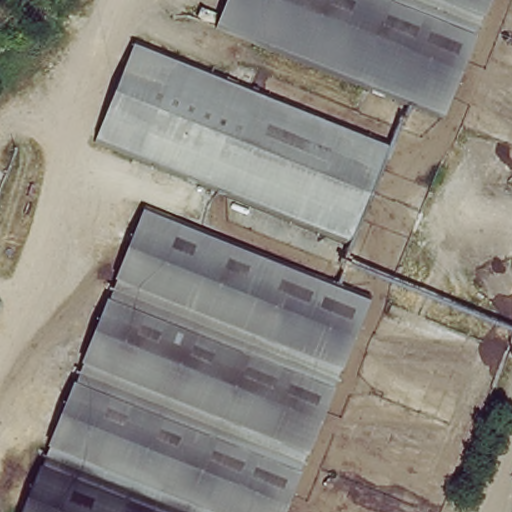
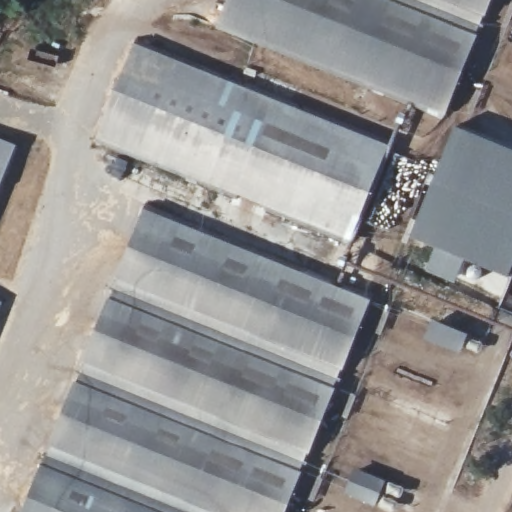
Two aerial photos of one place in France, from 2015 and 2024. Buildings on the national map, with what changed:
unchanged [(440,111),(219,20),(228,0),(486,0),(440,111)]
unchanged [(147,160),(104,142),(145,42),(187,59),(147,160)]
unchanged [(187,59),(389,141),(347,240),(147,160),(187,59)]
new [(422,270),(432,248),(408,237),(429,180),(454,124),(512,147),(512,271),(509,279),(465,262),(455,284),(422,270)]
unchanged [(0,204),(0,201),(1,202),(0,204)]
unchanged [(374,292),(286,512),(31,512),(154,204),(374,292)]
unchanged [(0,320),(0,307),(5,309),(0,320)]
new [(431,318),(469,333),(462,353),(423,339),(431,318)]

